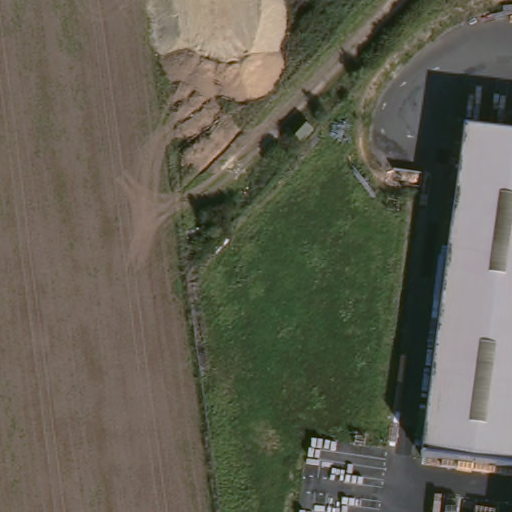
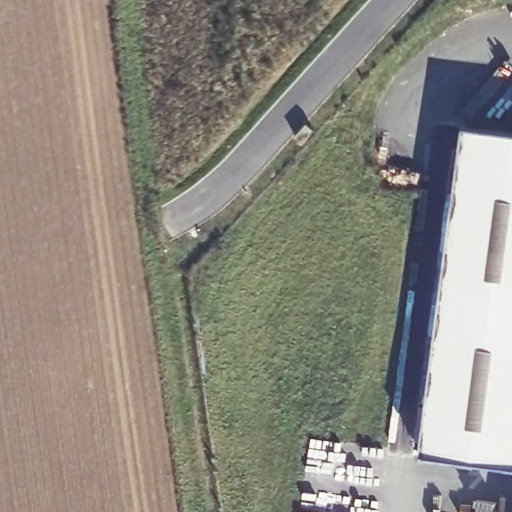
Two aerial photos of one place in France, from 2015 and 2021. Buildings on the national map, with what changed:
unchanged [(469,131),(512,136),(512,470),(426,457),(469,131)]

